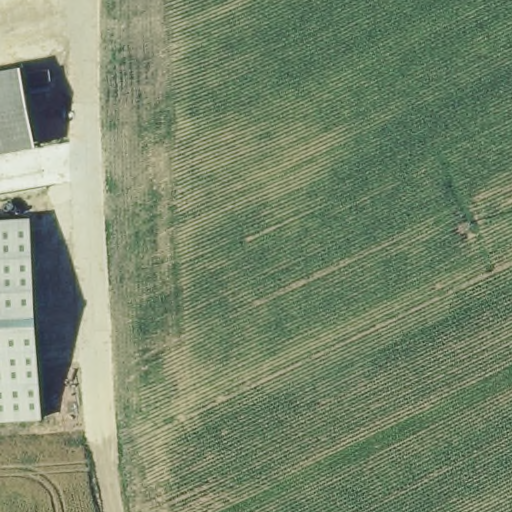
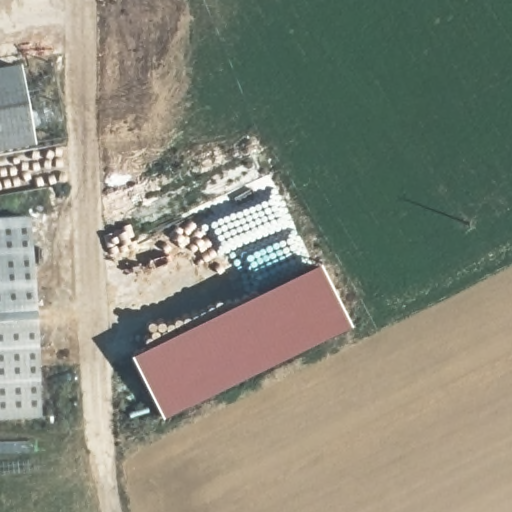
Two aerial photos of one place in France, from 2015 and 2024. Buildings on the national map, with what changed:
unchanged [(40,145),(0,153),(0,71),(25,67),(40,145)]
unchanged [(34,216),(45,416),(0,419),(0,217),(34,216)]
new [(356,325),(170,418),(139,353),(325,258),(356,325)]

